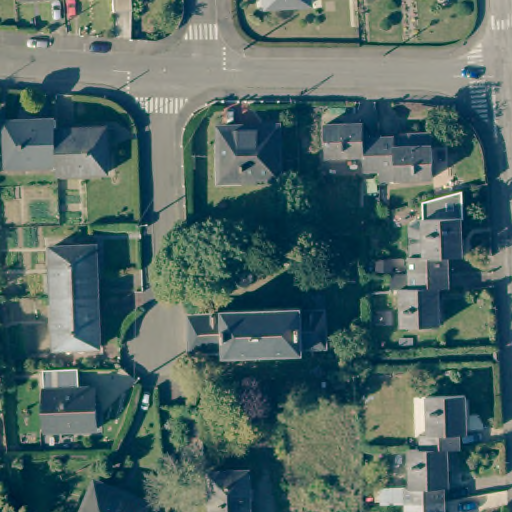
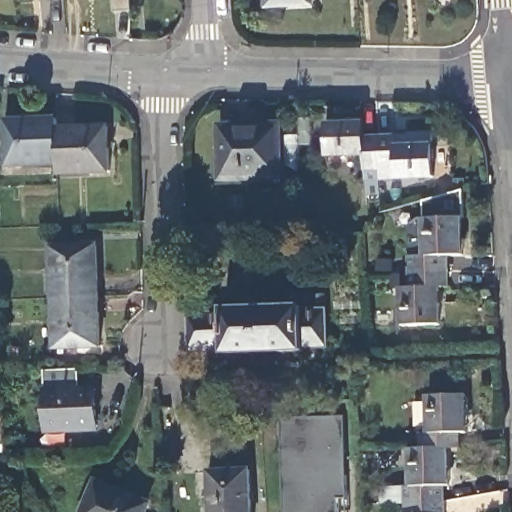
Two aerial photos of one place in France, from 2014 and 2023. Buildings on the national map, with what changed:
unchanged [(112,9),(111,0),(129,0),(130,8),(112,9)]
unchanged [(267,9),(266,0),(311,0),(312,6),(267,9)]
unchanged [(370,166),(370,151),(331,152),(330,119),(368,118),(368,133),(384,132),(385,166),(370,166)]
unchanged [(7,167),(5,121),(56,120),(56,130),(57,166),(7,167)]
unchanged [(281,180),(220,181),(218,126),(280,124),(281,180)]
unchanged [(108,129),(109,175),(57,176),(57,166),(56,130),(108,129)]
unchanged [(418,132),(418,130),(438,129),(439,175),(385,175),(385,166),(384,132),(418,132)]
unchanged [(407,230),(416,220),(462,218),(462,256),(448,256),(449,272),(409,273),(407,230)]
unchanged [(51,249),(96,247),(97,297),(53,299),(51,249)]
unchanged [(449,287),(438,288),(439,326),(402,327),(402,288),(410,288),(409,273),(449,272),(449,287)]
unchanged [(100,348),(55,349),(53,299),(97,297),(100,348)]
unchanged [(229,307),(229,304),(307,303),(307,305),(331,305),(331,344),(309,345),(309,347),(230,350),(230,347),(195,348),(194,308),(229,307)]
unchanged [(95,389),(96,430),(46,431),(44,390),(95,389)]
unchanged [(421,429),(428,429),(428,392),(466,391),(467,428),(460,428),(460,443),(447,444),(421,445),(421,429)]
new [(281,418),(342,416),(347,512),(285,512),(281,418)]
unchanged [(447,482),(445,482),(445,497),(406,498),(406,483),(410,483),(411,445),(421,445),(447,444),(447,482)]
unchanged [(250,470),(252,512),(209,512),(208,472),(250,470)]
unchanged [(149,505),(146,512),(80,512),(94,480),(149,505)]
unchanged [(445,512),(406,512),(406,498),(445,497),(445,512)]

